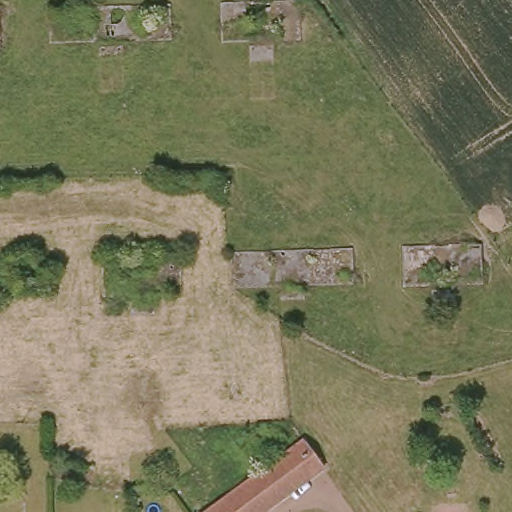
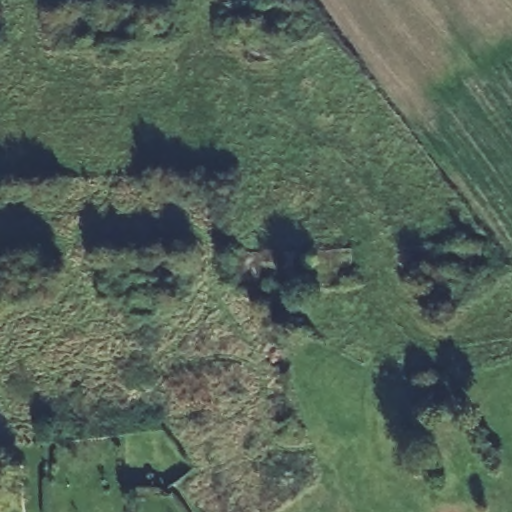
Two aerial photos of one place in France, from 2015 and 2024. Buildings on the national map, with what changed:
demolished [(299,437),(285,447),(275,434),(289,425),(299,437)]
demolished [(302,442),(322,469),(287,495),(267,468),(302,442)]
demolished [(267,468),(287,495),(263,512),(237,512),(229,497),(267,468)]
demolished [(229,497),(237,512),(208,512),(229,497)]

